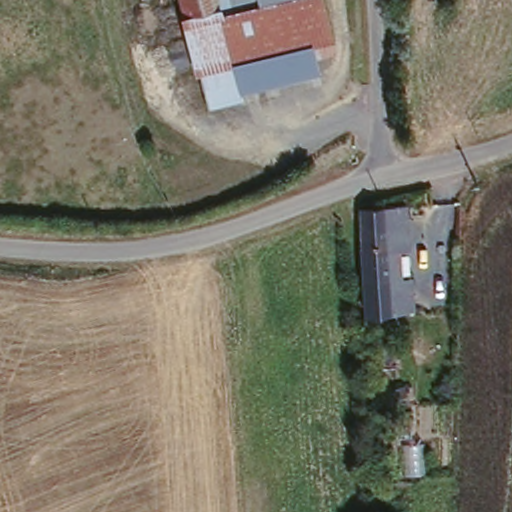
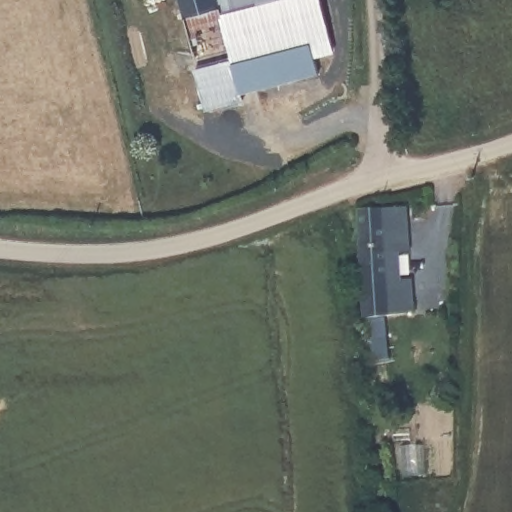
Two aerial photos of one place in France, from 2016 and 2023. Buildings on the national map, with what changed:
unchanged [(179,23),(172,0),(212,0),(215,12),(179,23)]
unchanged [(234,80),(239,105),(204,114),(179,23),(215,12),(212,0),(314,0),(327,55),(234,80)]
unchanged [(383,197),(385,233),(380,234),(380,268),(385,268),(386,283),(380,304),(365,306),(357,198),(383,197)]

